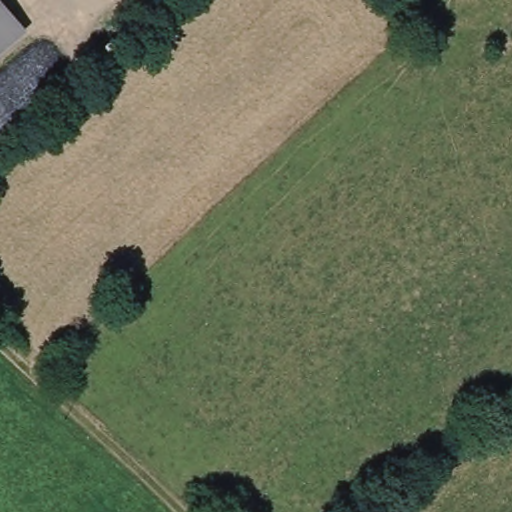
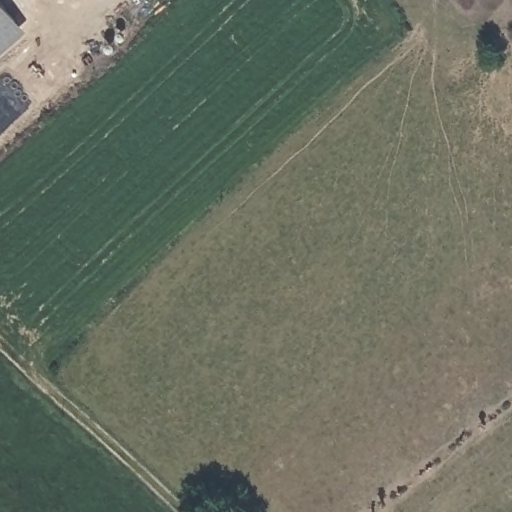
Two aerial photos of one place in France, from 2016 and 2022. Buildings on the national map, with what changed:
unchanged [(15,19),(0,33),(0,2),(15,19)]
unchanged [(15,19),(26,32),(0,55),(0,33),(15,19)]

